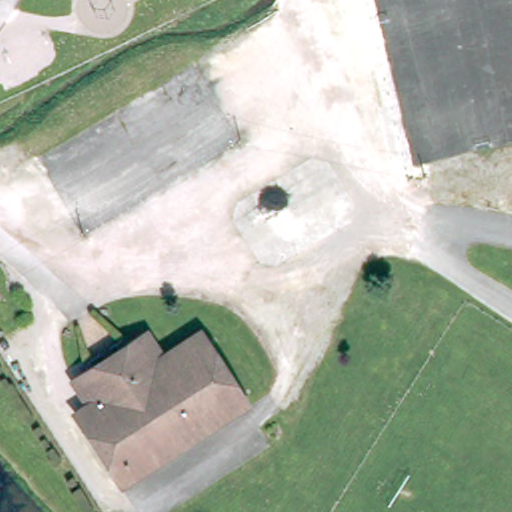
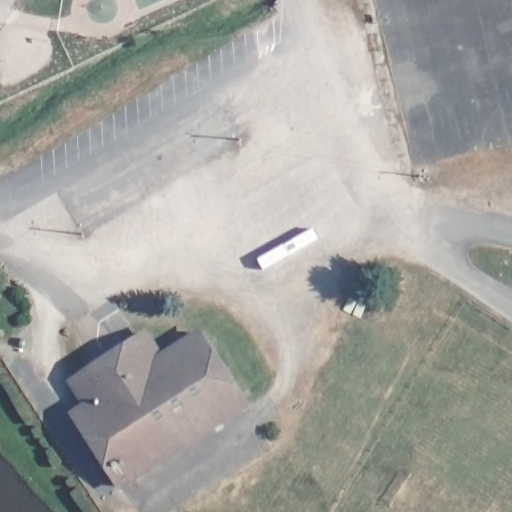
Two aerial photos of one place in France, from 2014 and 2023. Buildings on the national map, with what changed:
unchanged [(87,405),(72,382),(92,370),(85,360),(117,340),(125,349),(145,335),(162,360),(198,335),(242,405),(118,487),(81,428),(72,413),(87,405)]

